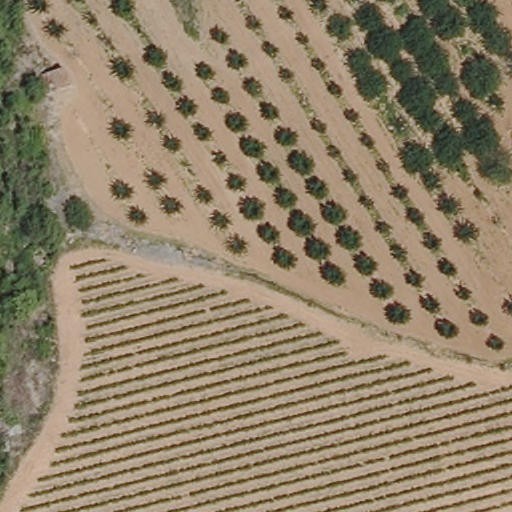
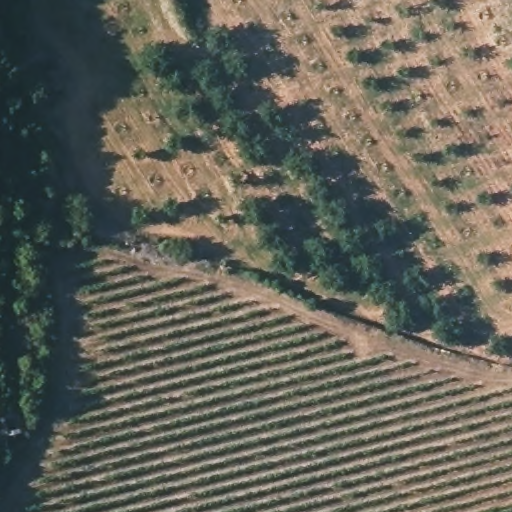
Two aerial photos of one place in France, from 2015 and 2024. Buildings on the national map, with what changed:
unchanged [(63,69),(68,87),(37,97),(32,80),(63,69)]

